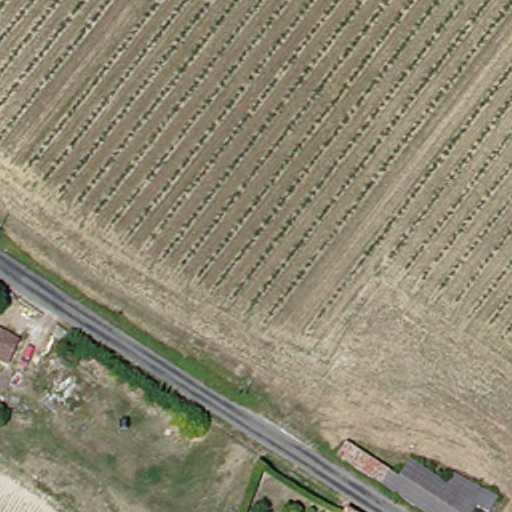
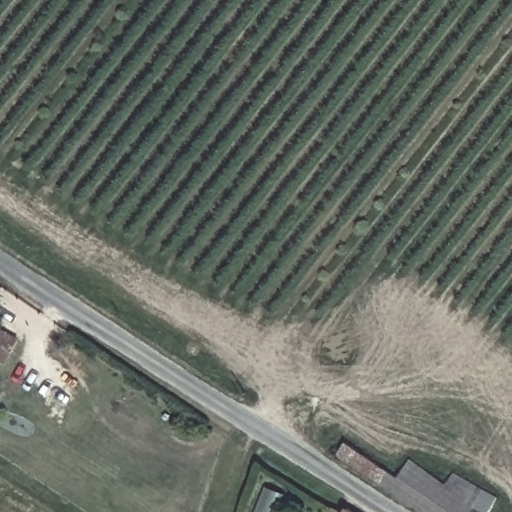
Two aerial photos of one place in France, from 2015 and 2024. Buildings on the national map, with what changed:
unchanged [(0,360),(0,330),(24,342),(12,366),(0,360)]
unchanged [(356,445),(397,469),(399,467),(415,482),(421,474),(455,496),(472,469),(510,495),(499,512),(488,512),(483,509),(482,512),(430,512),(387,485),(347,459),(356,445)]
unchanged [(355,512),(354,512),(354,511),(355,512)]

